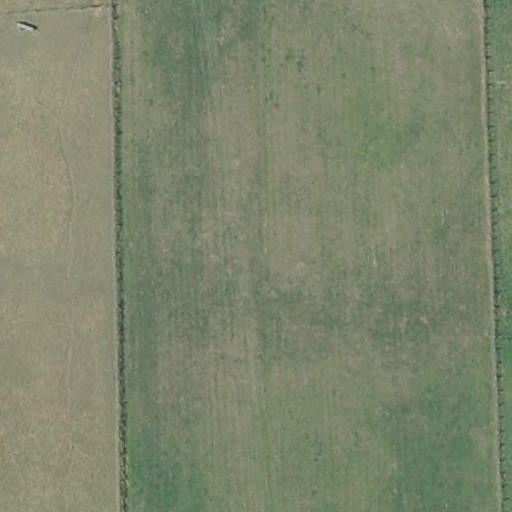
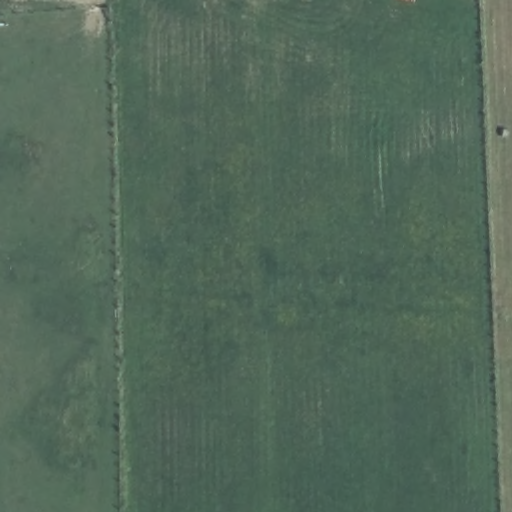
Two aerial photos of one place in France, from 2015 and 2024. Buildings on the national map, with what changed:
[]

